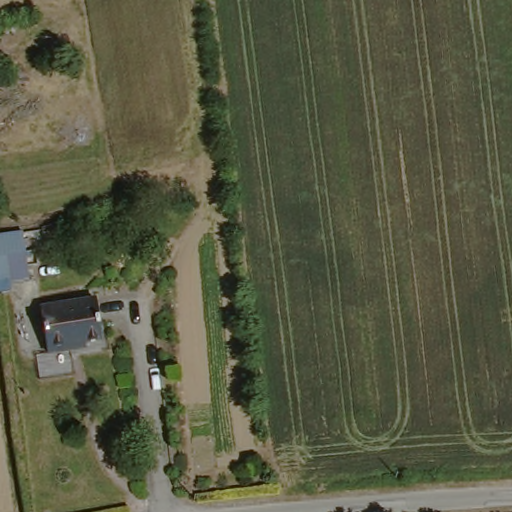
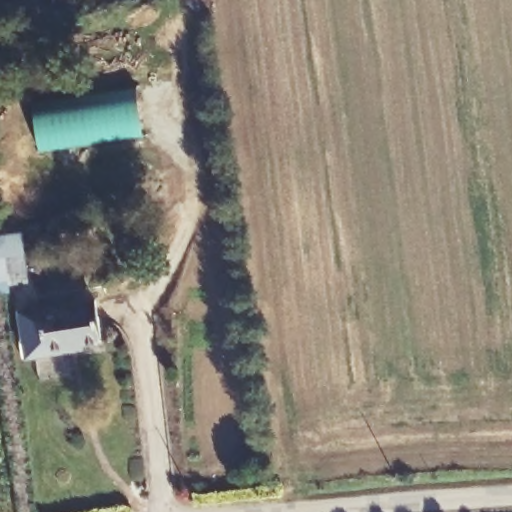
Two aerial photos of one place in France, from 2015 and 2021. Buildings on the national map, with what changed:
new [(145,134),(42,150),(34,104),(138,88),(145,134)]
unchanged [(28,233),(31,254),(12,258),(14,280),(0,282),(0,237),(28,233)]
unchanged [(43,309),(100,301),(105,341),(72,346),(72,351),(50,354),(43,309)]

